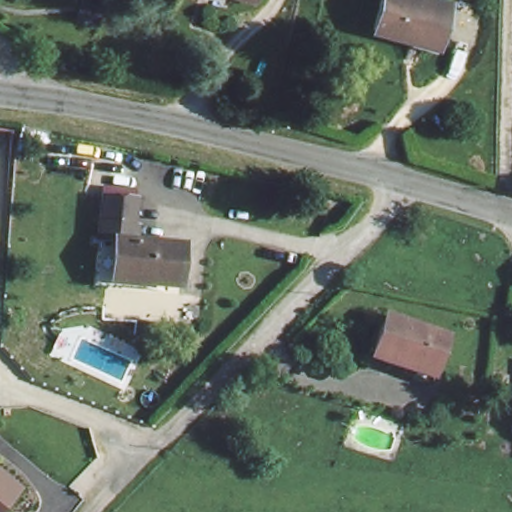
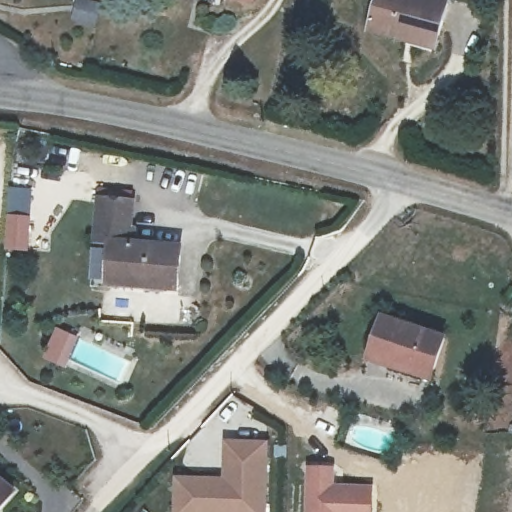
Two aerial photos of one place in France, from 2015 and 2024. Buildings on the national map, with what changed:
unchanged [(254,1),(247,0),(254,0),(254,1)]
unchanged [(439,46),(369,30),(375,0),(438,0),(449,2),(439,46)]
unchanged [(141,240),(190,245),(185,285),(126,278),(123,283),(103,280),(114,194),(146,199),(141,240)]
unchanged [(387,368),(390,361),(373,356),(388,317),(446,338),(435,374),(432,383),(387,368)]
new [(269,440),(267,512),(173,512),(175,476),(223,476),(224,439),(269,440)]
new [(337,465),(336,484),(375,484),(373,512),(306,512),(308,465),(337,465)]
unchanged [(0,509),(0,483),(13,494),(0,509)]

